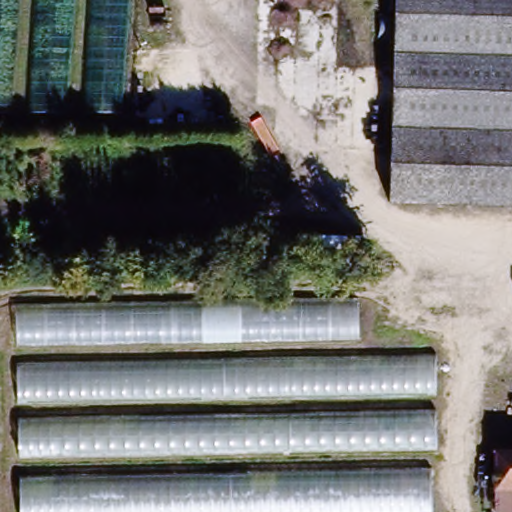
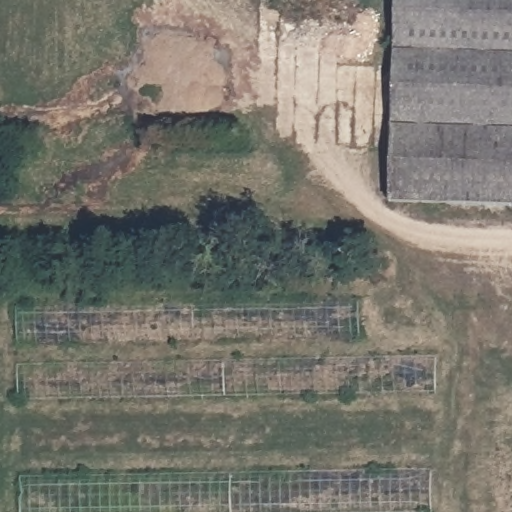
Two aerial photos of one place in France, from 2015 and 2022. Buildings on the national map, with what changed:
demolished [(0,118),(0,0),(19,0),(10,119),(0,118)]
demolished [(69,117),(29,116),(36,0),(73,0),(69,117)]
demolished [(122,122),(89,122),(95,0),(130,0),(122,122)]
unchanged [(394,212),(394,95),(396,0),(512,0),(512,211),(394,212)]
unchanged [(20,352),(21,315),(358,304),(360,343),(20,352)]
unchanged [(437,401),(22,406),(22,373),(434,362),(437,401)]
demolished [(437,437),(438,456),(22,461),(23,422),(436,417),(437,437)]
unchanged [(495,495),(497,457),(512,457),(512,496),(495,495)]
unchanged [(428,512),(18,512),(17,478),(426,473),(428,512)]
unchanged [(512,496),(512,512),(494,512),(495,495),(512,496)]

